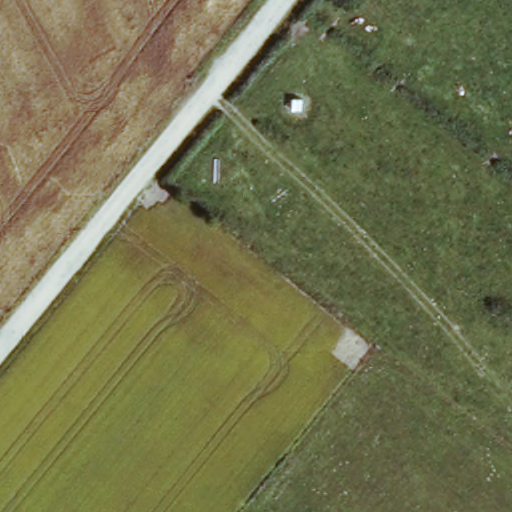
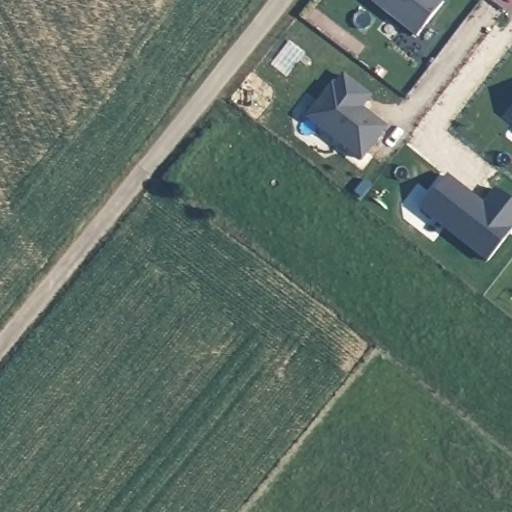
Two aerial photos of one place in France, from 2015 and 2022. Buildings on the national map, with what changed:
new [(417,37),(369,0),(437,0),(443,4),(417,37)]
new [(332,87),(334,89),(343,77),(370,98),(361,109),(386,129),(361,161),(307,119),(332,87)]
new [(494,188),(512,203),(512,233),(487,264),(419,211),(448,175),(483,202),(494,188)]

